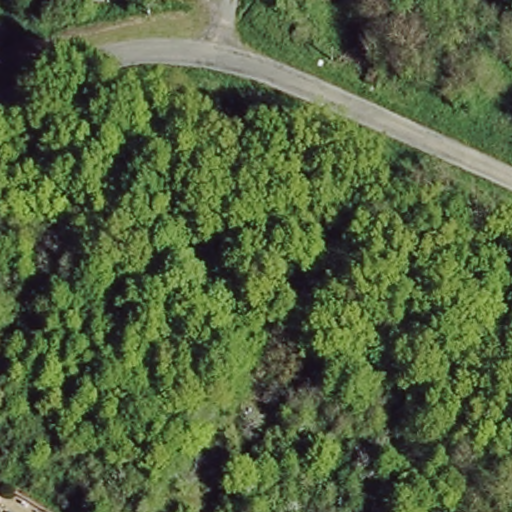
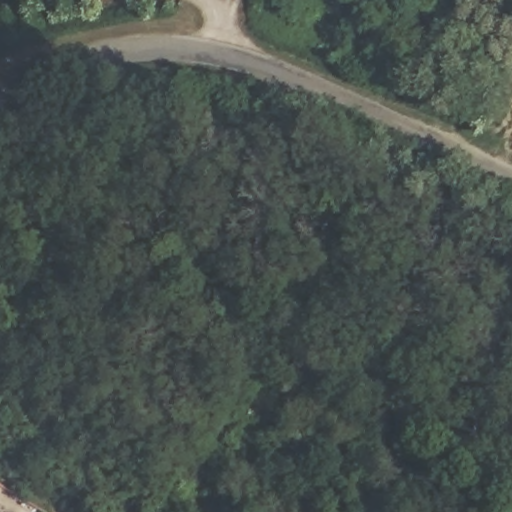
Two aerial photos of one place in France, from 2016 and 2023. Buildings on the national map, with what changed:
[]

